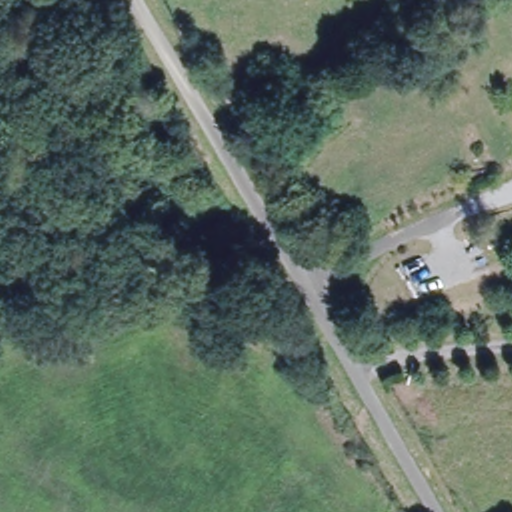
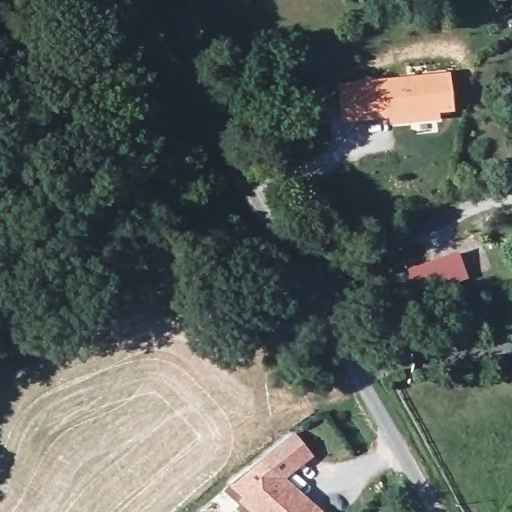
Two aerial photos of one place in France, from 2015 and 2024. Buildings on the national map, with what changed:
new [(454,111),(438,113),(439,119),(390,124),(389,116),(341,122),(337,86),(449,72),(454,111)]
new [(415,294),(407,269),(457,250),(467,277),(415,294)]
new [(238,501),(242,497),(228,486),(263,457),(323,512),(250,512),(238,501)]

